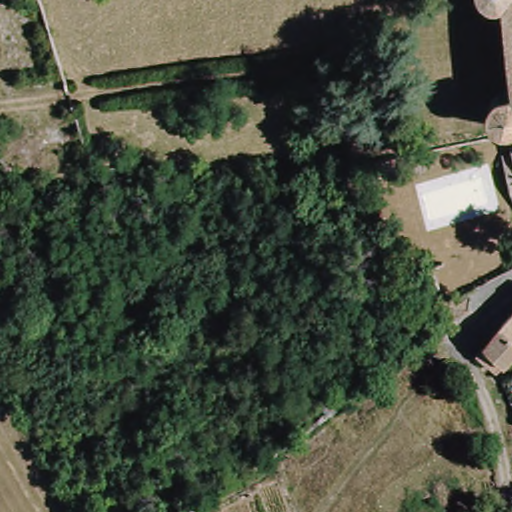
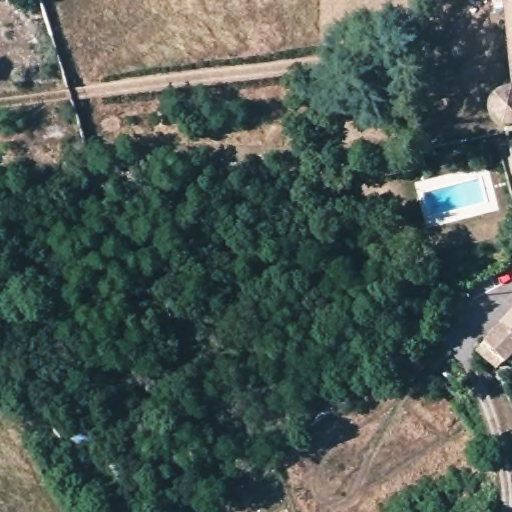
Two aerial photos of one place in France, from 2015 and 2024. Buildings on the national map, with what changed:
unchanged [(502,127),(495,125),(489,121),(486,113),(486,104),(492,95),(499,91),(511,87),(506,47),(501,0),(512,0),(512,126),(509,127),(502,127)]
unchanged [(425,152),(428,167),(408,172),(404,157),(403,154),(424,149),(425,152)]
unchanged [(455,313),(448,297),(466,291),(471,307),(455,313)]
unchanged [(485,357),(475,343),(497,319),(512,303),(512,345),(501,355),(495,362),(485,357)]

